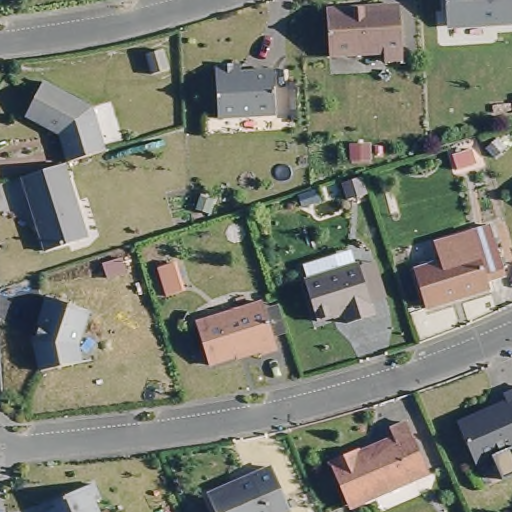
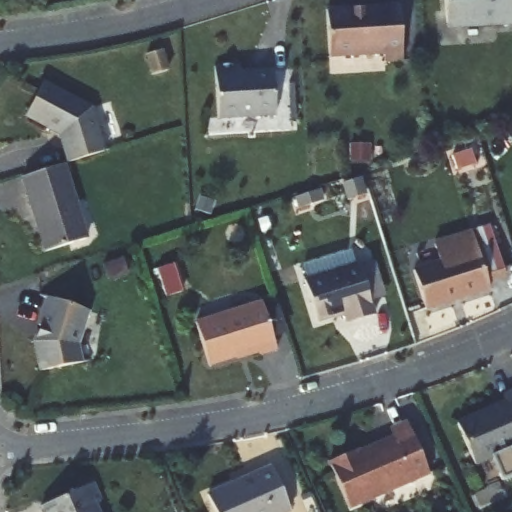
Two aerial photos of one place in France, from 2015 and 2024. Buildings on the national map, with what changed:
unchanged [(441,0),(512,0),(512,23),(442,27),(441,0)]
unchanged [(387,61),(386,54),(332,57),(328,10),(400,5),(404,60),(387,61)]
unchanged [(159,53),(164,74),(149,77),(144,57),(159,53)]
unchanged [(217,117),(214,66),(239,65),(239,72),(272,70),(274,113),(217,117)]
unchanged [(66,159),(57,127),(50,124),(49,126),(24,112),(40,79),(90,104),(103,147),(66,159)]
unchanged [(467,154),(472,169),(453,175),(449,160),(467,154)]
unchanged [(62,160),(85,233),(44,247),(22,173),(62,160)]
unchanged [(502,275),(485,281),(487,287),(422,308),(411,271),(437,262),(431,242),(487,226),(502,275)]
unchanged [(370,314),(343,322),(340,312),(313,320),(300,277),(355,262),(370,314)]
unchanged [(72,342),(76,362),(36,369),(31,336),(33,337),(37,326),(34,324),(43,296),(83,309),(72,342)]
unchanged [(274,345),(257,350),(255,345),(205,359),(193,316),(259,296),(274,345)]
unchanged [(455,418),(505,398),(502,392),(512,387),(512,444),(474,461),(455,418)]
unchanged [(343,509),(323,462),(350,451),(352,455),(389,439),(386,432),(402,426),(424,475),(343,509)]
unchanged [(286,512),(212,512),(205,495),(269,468),(288,511),(286,512)]
unchanged [(97,498),(90,502),(95,512),(41,512),(38,506),(90,483),(97,498)]

